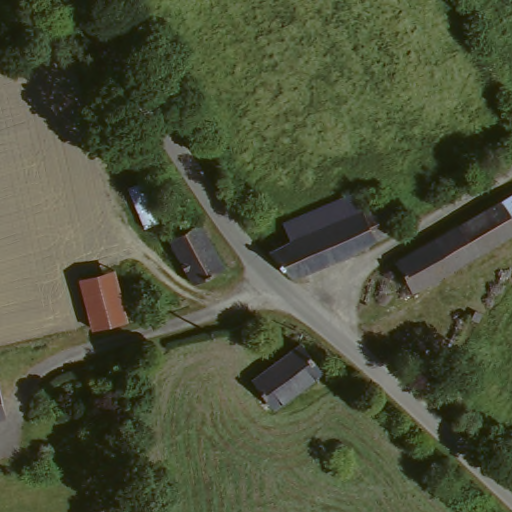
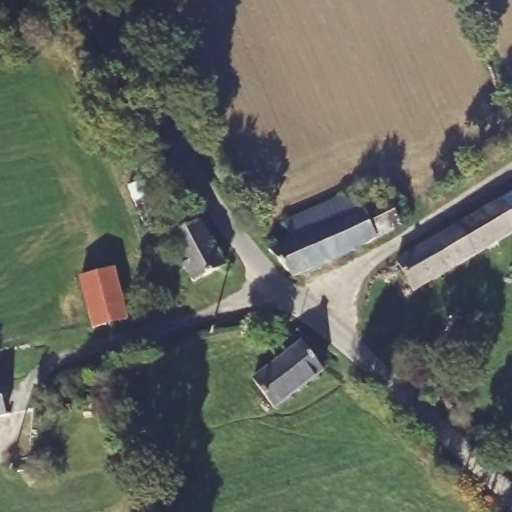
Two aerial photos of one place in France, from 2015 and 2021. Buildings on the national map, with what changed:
unchanged [(272,259),(291,251),(281,224),(349,194),(362,220),(387,209),(397,231),(396,232),(358,252),(319,270),(295,282),(272,259)]
unchanged [(512,196),(512,234),(495,207),(512,196)]
unchanged [(512,234),(409,294),(394,266),(495,207),(512,234)]
unchanged [(221,268),(190,285),(167,242),(192,227),(197,225),(207,242),(221,268)]
unchanged [(91,332),(79,280),(111,272),(124,326),(91,332)]
unchanged [(254,380),(301,342),(323,370),(277,407),(254,380)]
unchanged [(0,420),(0,385),(7,417),(0,420)]

